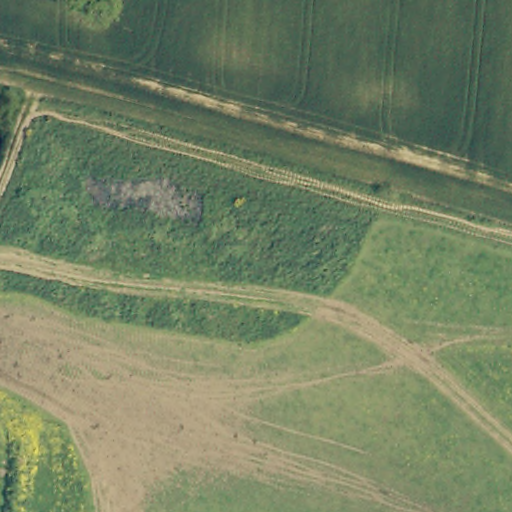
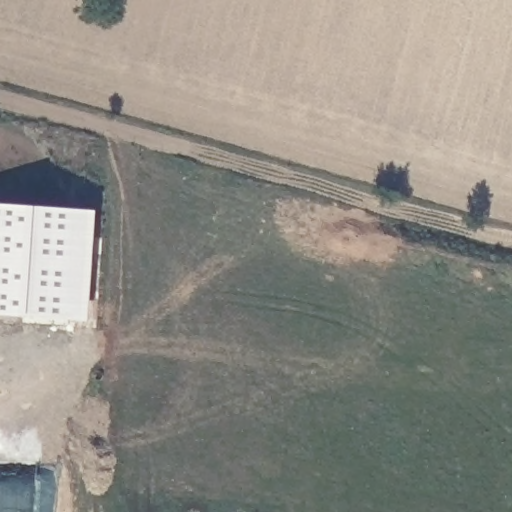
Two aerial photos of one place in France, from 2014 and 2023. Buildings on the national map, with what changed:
new [(80,310),(0,306),(0,198),(89,202),(80,310)]

